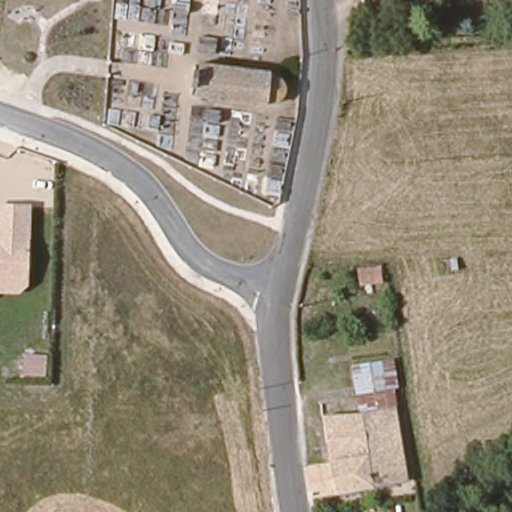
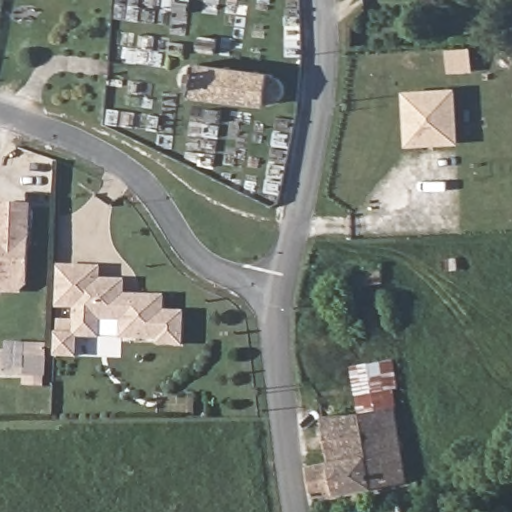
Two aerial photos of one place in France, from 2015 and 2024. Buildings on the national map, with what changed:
unchanged [(265,80),(272,82),(274,92),(269,100),(263,100),(260,107),(182,96),(187,63),(198,64),(249,70),(264,72),(265,80)]
new [(405,147),(401,91),(455,89),(458,144),(405,147)]
unchanged [(30,203),(27,283),(18,292),(0,292),(0,202),(30,203)]
unchanged [(380,274),(360,274),(360,260),(378,258),(380,274)]
new [(158,346),(158,341),(119,340),(120,322),(100,322),(100,339),(77,338),(77,358),(55,358),(56,320),(73,320),(73,310),(56,310),(57,265),(101,266),(101,279),(125,279),(125,294),(164,295),(164,311),(186,312),(185,347),(158,346)]
new [(2,343),(46,345),(45,375),(1,373),(2,343)]
unchanged [(391,361),(397,405),(360,410),(354,365),(391,361)]
unchanged [(328,462),(325,416),(360,410),(397,405),(405,480),(312,494),(310,465),(328,462)]
unchanged [(326,511),(326,512),(323,512),(326,511)]

